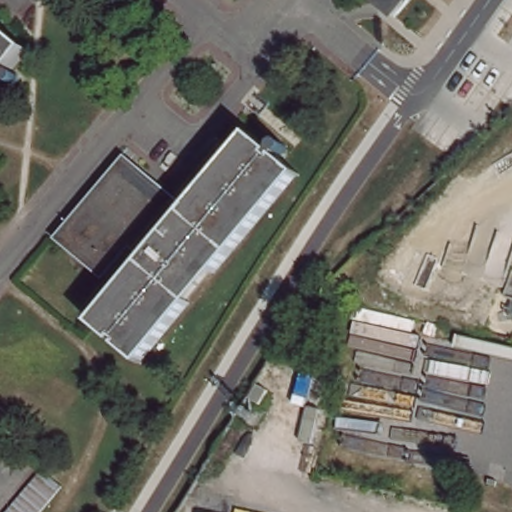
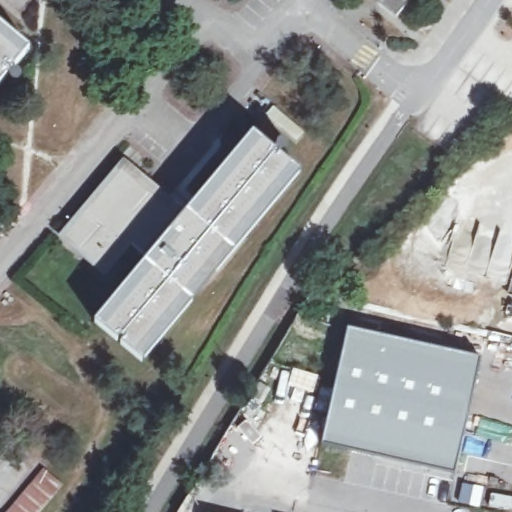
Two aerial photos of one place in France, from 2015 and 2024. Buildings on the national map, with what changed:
unchanged [(393,13),(378,0),(404,0),(393,13)]
unchanged [(13,73),(14,73),(15,73),(16,73),(16,74),(17,74),(17,75),(18,75),(18,76),(18,77),(18,78),(18,79),(18,80),(17,80),(17,81),(16,81),(16,82),(15,82),(14,82),(14,83),(13,83),(12,83),(12,82),(11,82),(10,82),(10,81),(9,80),(8,80),(8,79),(8,78),(8,77),(8,76),(5,74),(0,80),(0,35),(22,53),(8,70),(11,73),(12,73),(13,73)]
unchanged [(140,354),(124,341),(126,337),(121,333),(118,336),(102,322),(155,257),(150,254),(132,239),(108,268),(65,232),(122,164),(140,179),(148,186),(154,180),(176,198),(188,208),(192,212),(207,194),(258,133),(276,148),(280,144),(280,143),(280,142),(280,141),(280,140),(280,139),(281,139),(282,138),(283,138),(284,138),(285,137),(285,138),(286,138),(287,138),(288,139),(289,140),(290,140),(290,141),(290,142),(290,143),(290,144),(290,145),(289,145),(288,146),(287,147),(286,147),(285,147),(285,148),(284,148),(281,152),(297,166),(140,354)]
new [(352,329),(487,358),(461,476),(327,447),(352,329)]
unchanged [(66,485),(43,512),(8,512),(45,467),(66,485)]

